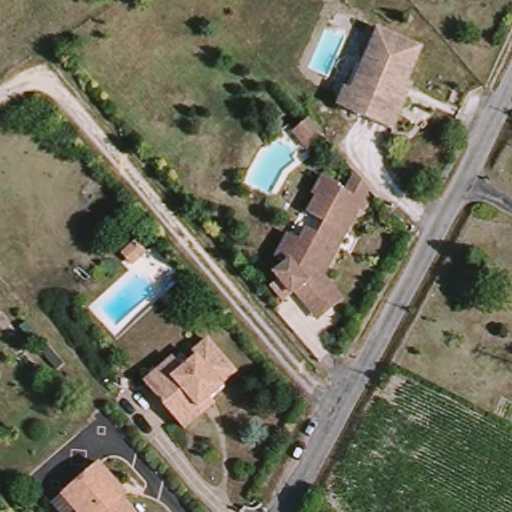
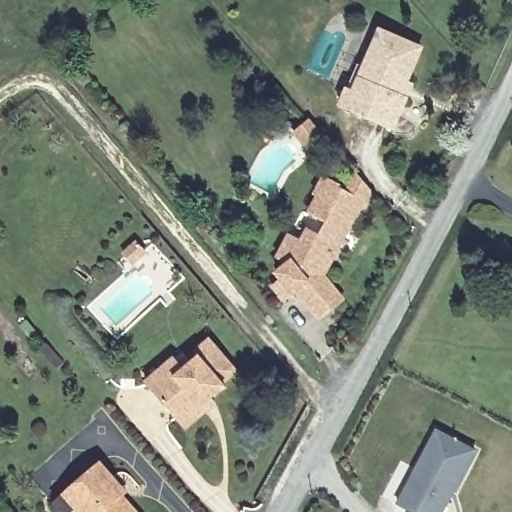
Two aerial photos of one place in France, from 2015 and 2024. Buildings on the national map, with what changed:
unchanged [(363,65),(370,69),(385,32),(425,49),(412,81),(417,84),(412,98),(398,130),(360,114),(346,109),(363,65)]
unchanged [(315,121),(328,136),(319,145),(313,150),(300,135),(306,130),(315,121)]
unchanged [(317,323),(307,311),(296,295),(293,297),(277,277),(290,268),(278,261),(292,238),(305,245),(312,234),(322,240),(328,227),(313,219),(323,202),(318,200),(329,181),(346,191),(344,194),(351,197),(362,179),(376,195),(375,195),(368,206),(370,207),(370,208),(371,210),(371,212),(371,213),(370,214),(368,215),(367,215),(366,215),(365,215),(364,215),(363,215),(349,240),(342,252),(325,281),(333,291),(342,305),(317,323)]
unchanged [(132,267),(124,259),(138,247),(145,255),(132,267)]
unchanged [(206,412),(187,429),(154,392),(147,385),(176,360),(185,371),(199,359),(196,355),(211,342),(237,372),(225,383),(227,387),(214,400),(217,403),(206,412)]
new [(475,452),(443,512),(411,512),(397,505),(437,431),(475,452)]
unchanged [(111,480),(115,484),(114,485),(115,491),(112,495),(116,498),(122,497),(135,512),(54,512),(52,510),(62,499),(96,466),(110,481),(111,480)]

